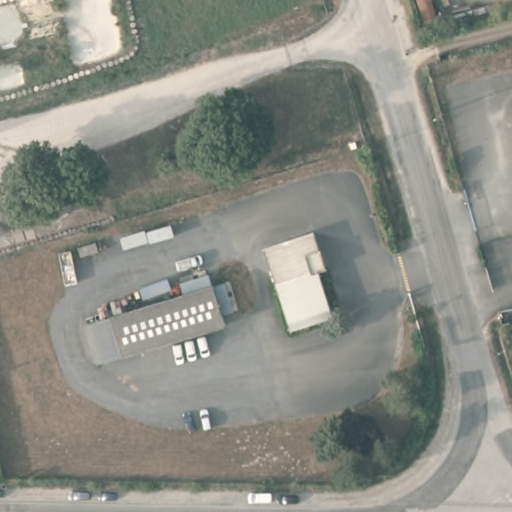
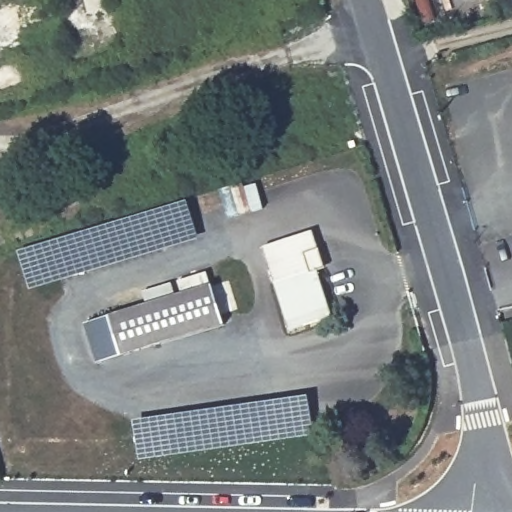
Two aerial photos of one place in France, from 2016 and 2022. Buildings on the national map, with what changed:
new [(32,290),(20,252),(190,202),(200,239),(32,290)]
unchanged [(315,233),(326,266),(318,270),(333,316),(292,329),(266,247),(315,233)]
unchanged [(225,325),(102,362),(91,324),(214,286),(225,325)]
new [(316,435),(140,461),(135,421),(310,397),(316,435)]

